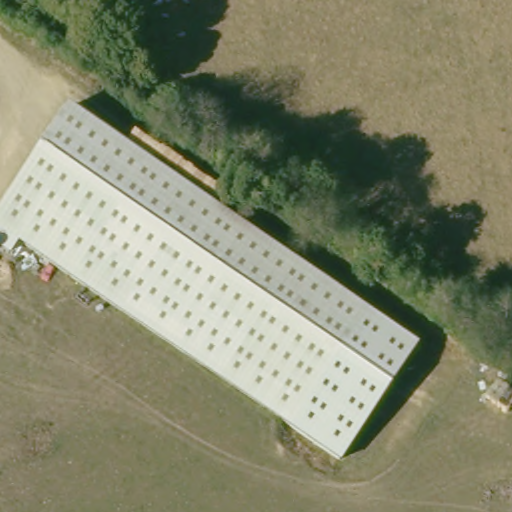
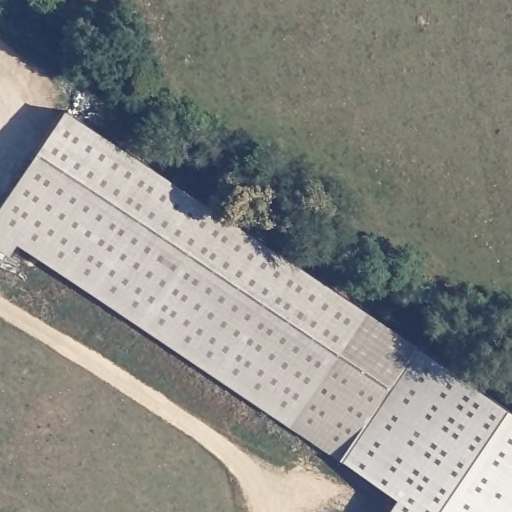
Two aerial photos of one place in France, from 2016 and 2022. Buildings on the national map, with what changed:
unchanged [(417,340),(338,460),(17,243),(8,255),(0,249),(0,205),(67,106),(417,340)]
new [(388,512),(399,496),(340,457),(417,340),(512,406),(512,512),(388,512)]

